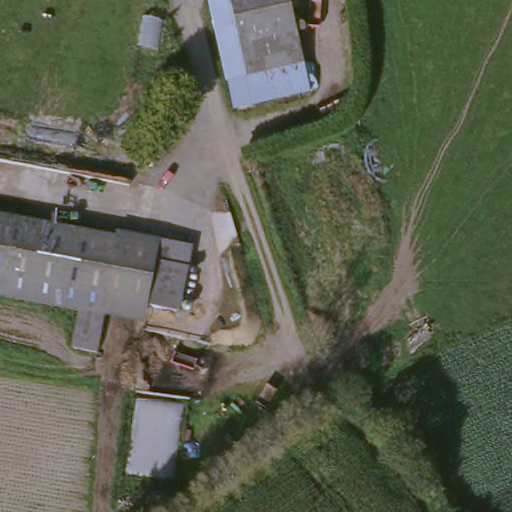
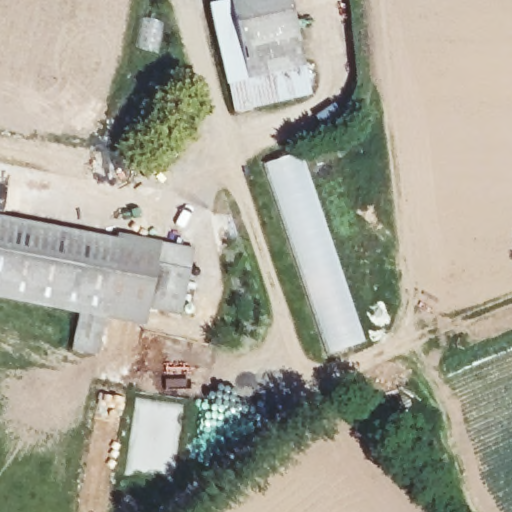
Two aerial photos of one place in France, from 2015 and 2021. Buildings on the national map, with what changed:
unchanged [(217,6),(248,0),(294,0),(316,96),(243,113),(217,6)]
new [(264,162),(299,150),(364,341),(327,355),(264,162)]
unchanged [(0,212),(156,240),(170,242),(159,308),(156,325),(144,324),(0,296),(0,212)]
unchanged [(170,242),(203,247),(192,315),(159,308),(170,242)]

